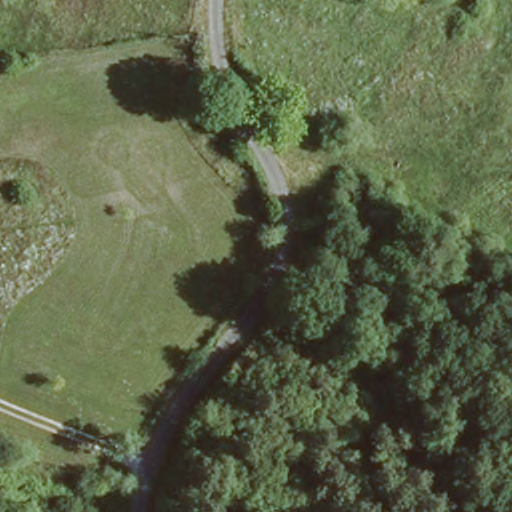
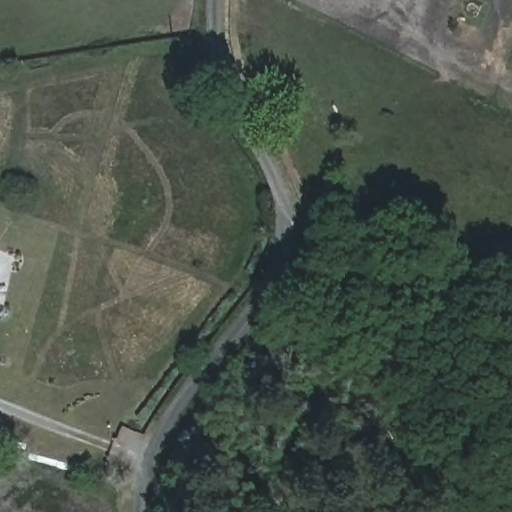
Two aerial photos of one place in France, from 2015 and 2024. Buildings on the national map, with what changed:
unchanged [(468,14),(472,0),(493,0),(486,21),(468,14)]

